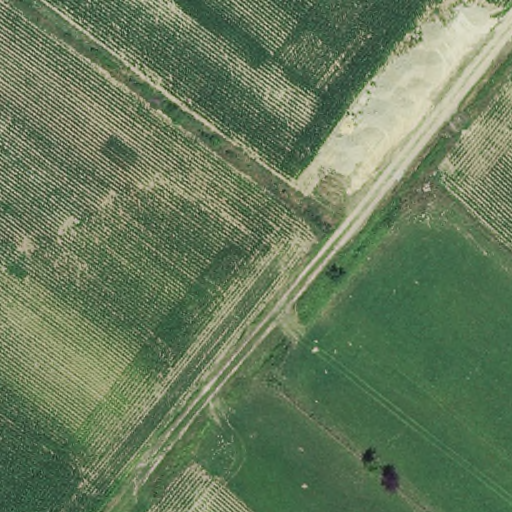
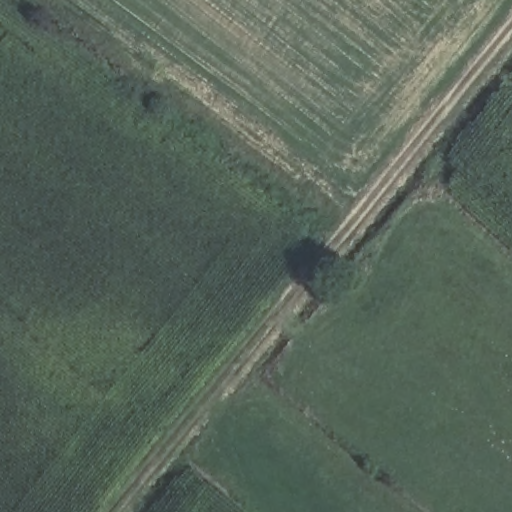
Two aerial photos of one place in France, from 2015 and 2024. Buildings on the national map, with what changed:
[]

